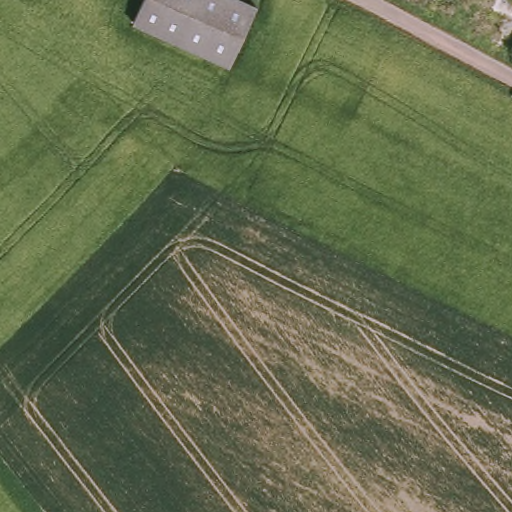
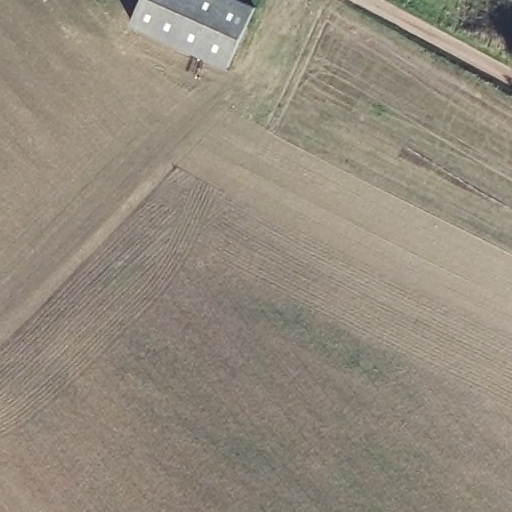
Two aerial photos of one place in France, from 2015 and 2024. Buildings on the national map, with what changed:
unchanged [(229,70),(132,26),(144,0),(239,0),(257,9),(229,70)]

